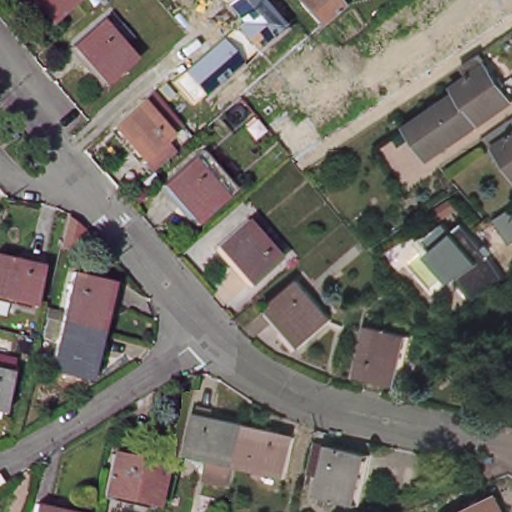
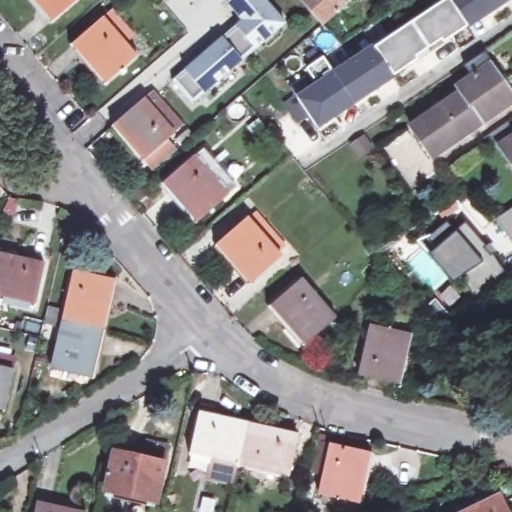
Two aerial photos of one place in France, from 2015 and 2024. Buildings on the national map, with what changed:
unchanged [(52,21),(42,10),(34,0),(76,0),(52,21)]
unchanged [(237,21),(218,0),(262,0),(283,25),(192,105),(170,81),(237,21)]
new [(287,101),(295,95),(315,82),(306,69),(322,58),(330,71),(372,45),(373,46),(443,0),(510,0),(468,29),(467,26),(443,41),(442,40),(415,56),(416,60),(393,75),(395,78),(317,128),(310,117),(302,122),(287,101)]
unchanged [(321,25),(302,2),(304,0),(340,0),(344,5),(321,25)]
demolished [(430,44),(410,16),(435,0),(441,0),(447,8),(451,5),(476,41),(403,90),(390,71),(430,44)]
unchanged [(73,44),(111,11),(128,30),(119,39),(137,57),(103,87),(87,69),(92,65),(73,44)]
unchanged [(431,169),(410,137),(461,103),(457,97),(471,87),(465,77),(483,65),(495,81),(503,93),(508,89),(512,87),(512,112),(482,133),(431,169)]
unchanged [(115,124),(113,121),(141,97),(142,99),(150,92),(150,93),(182,127),(165,141),(175,152),(155,170),(115,124)]
unchanged [(500,143),(512,135),(512,161),(500,143)]
unchanged [(164,183),(202,150),(235,187),(198,220),(164,183)]
unchanged [(218,248),(246,223),(250,228),(258,220),(285,250),(277,257),(281,261),(252,285),(218,248)]
unchanged [(447,224),(455,234),(467,224),(511,279),(475,303),(457,280),(450,285),(427,256),(435,250),(426,241),(447,224)]
unchanged [(0,292),(0,253),(47,264),(37,308),(22,305),(23,297),(0,292)]
unchanged [(87,375),(61,370),(72,320),(55,316),(58,307),(74,310),(84,271),(121,280),(110,329),(98,378),(87,375)]
unchanged [(275,310),(305,285),(338,323),(309,349),(275,310)]
unchanged [(365,375),(375,326),(414,335),(403,384),(365,375)]
unchanged [(0,372),(13,375),(7,400),(5,413),(0,412),(0,372)]
unchanged [(217,475),(221,457),(195,451),(204,412),(253,424),(303,436),(293,475),(245,463),(240,480),(217,475)]
unchanged [(323,493),(335,445),(372,454),(360,502),(323,493)]
unchanged [(110,495),(118,456),(148,463),(152,447),(171,452),(167,468),(158,505),(110,495)]
unchanged [(508,512),(468,512),(500,497),(508,512)]
unchanged [(84,512),(39,512),(42,502),(84,512)]
unchanged [(468,512),(464,512),(472,508),(468,512)]

